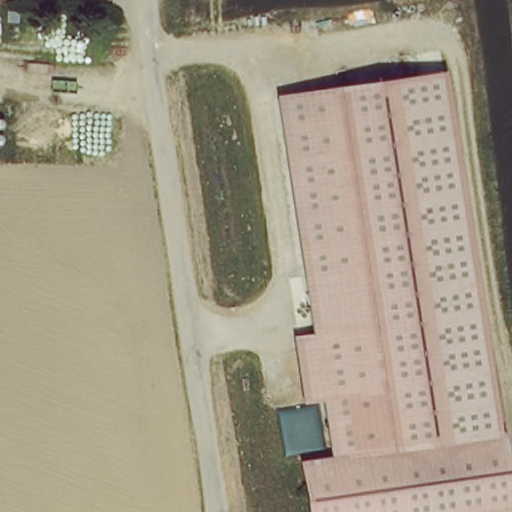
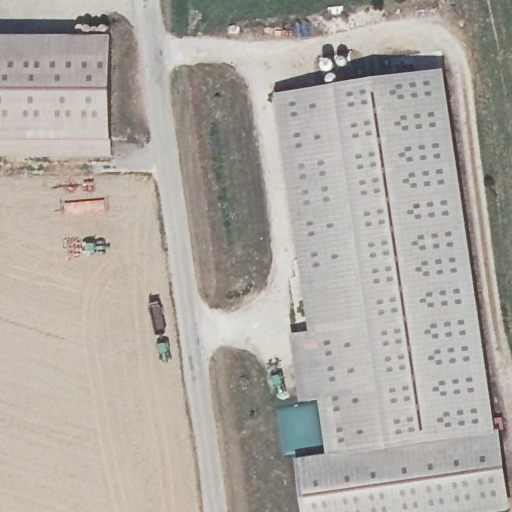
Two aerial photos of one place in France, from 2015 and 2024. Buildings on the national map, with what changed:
new [(112,41),(112,140),(112,155),(0,156),(0,43),(112,41)]
unchanged [(298,461),(328,457),(320,402),(300,404),(291,336),(312,333),(279,97),(445,72),(495,431),(500,430),(512,512),(304,512),(298,461)]

